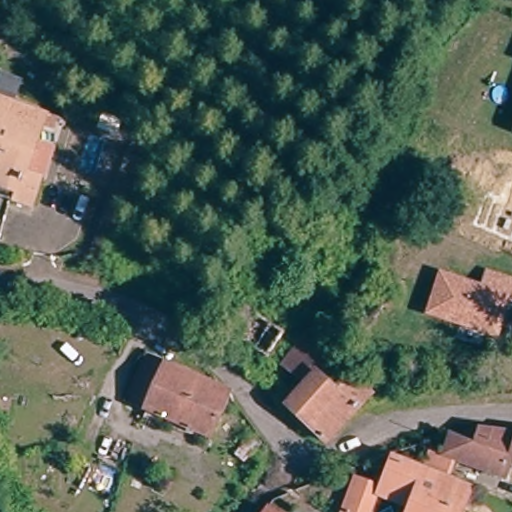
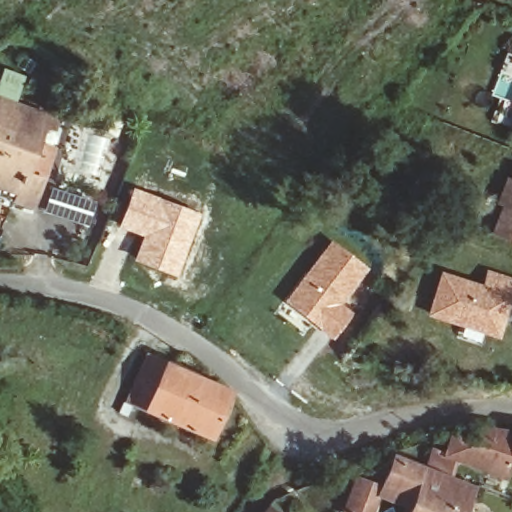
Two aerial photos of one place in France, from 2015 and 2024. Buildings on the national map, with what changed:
unchanged [(24,189),(0,182),(0,98),(47,112),(24,189)]
new [(491,236),(512,181),(512,243),(491,236)]
new [(131,185),(199,212),(175,276),(131,260),(139,236),(115,226),(131,185)]
unchanged [(24,189),(41,194),(36,208),(19,202),(24,189)]
new [(331,238),(369,267),(344,303),(354,311),(332,340),(282,301),(331,238)]
unchanged [(486,268),(512,277),(512,300),(500,338),(424,315),(439,269),(482,284),(486,268)]
unchanged [(261,359),(224,338),(239,311),(276,332),(261,359)]
demolished [(334,439),(332,440),(291,406),(310,383),(318,374),(303,362),(296,371),(287,363),(317,326),(348,352),(328,376),(342,388),(354,373),(374,390),(334,439)]
unchanged [(155,406),(135,398),(154,356),(173,364),(174,361),(235,389),(218,432),(155,406)]
unchanged [(506,474),(456,457),(446,453),(448,447),(455,426),(471,424),(512,430),(512,457),(506,474)]
unchanged [(473,484),(462,512),(407,512),(411,502),(379,488),(393,452),(425,466),(435,443),(448,447),(446,453),(456,457),(449,474),(473,484)]
unchanged [(351,512),(346,510),(358,479),(374,485),(364,512),(351,512)]
unchanged [(278,512),(269,512),(272,508),(278,512)]

